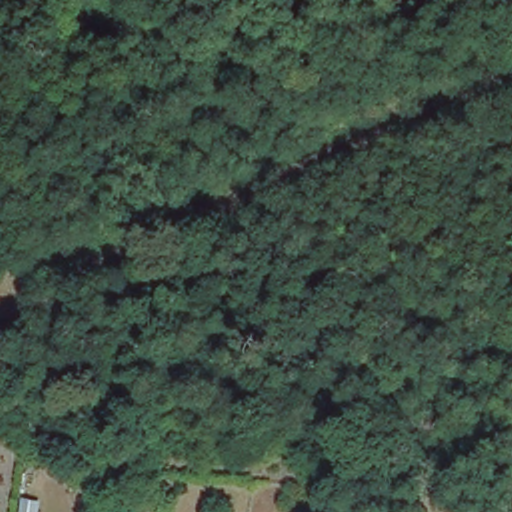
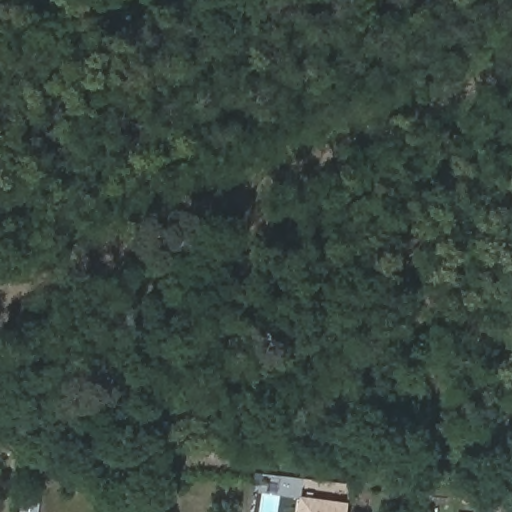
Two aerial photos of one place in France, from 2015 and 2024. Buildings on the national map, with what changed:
unchanged [(34,500),(40,501),(39,512),(21,512),(23,498),(34,500)]
new [(304,499),(351,505),(350,512),(302,512),(304,499)]

